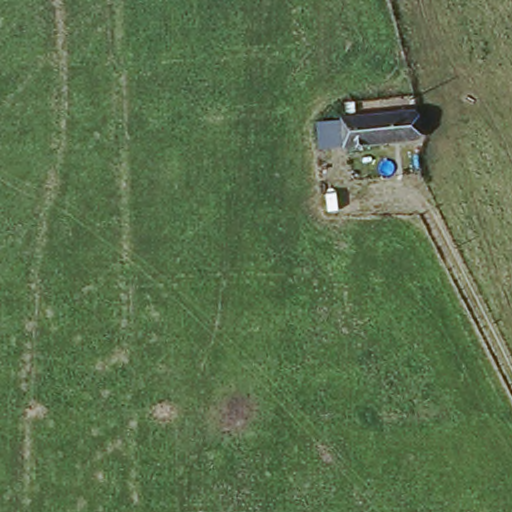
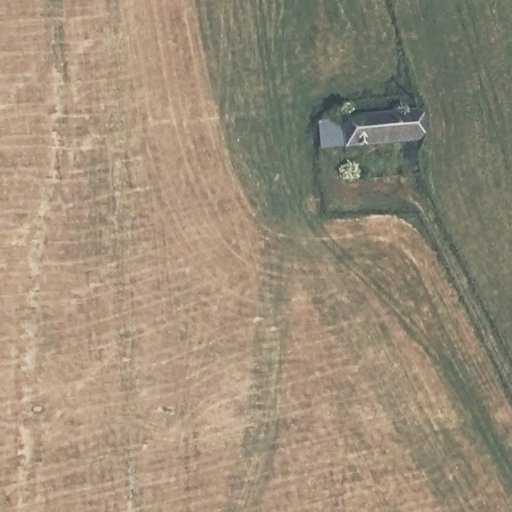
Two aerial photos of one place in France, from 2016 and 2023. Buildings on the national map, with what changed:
unchanged [(421,113),(425,147),(318,157),(314,126),(345,126),(345,121),(421,113)]

